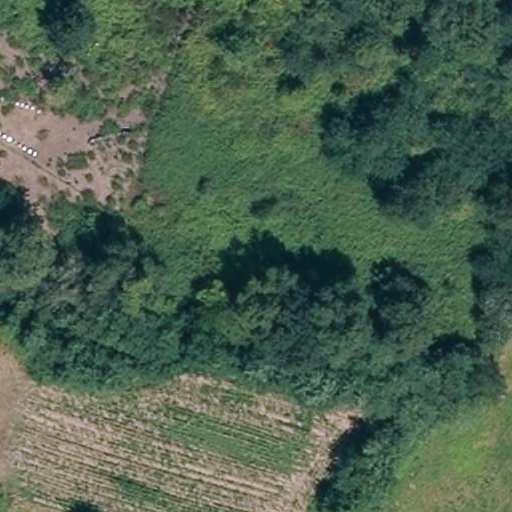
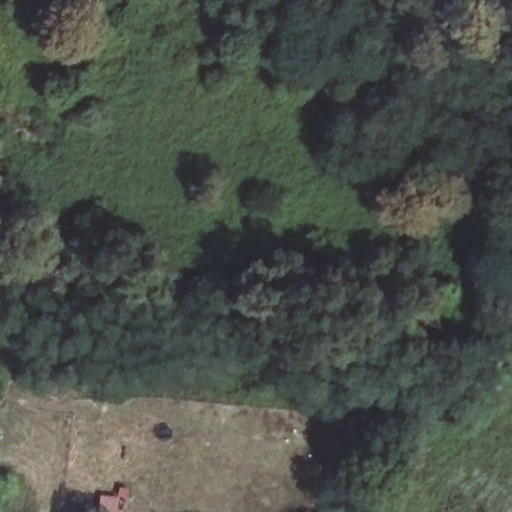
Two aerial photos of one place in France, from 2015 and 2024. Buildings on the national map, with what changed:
[]

